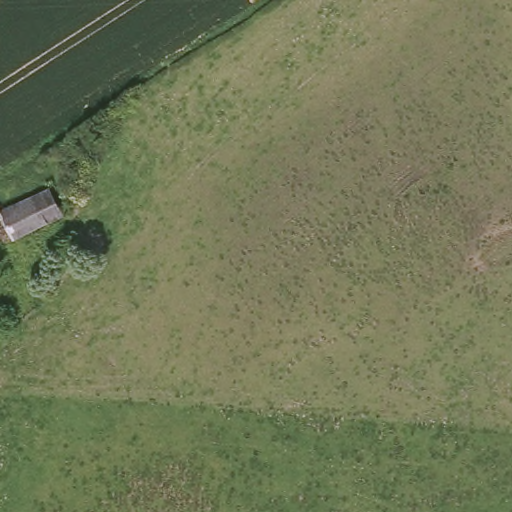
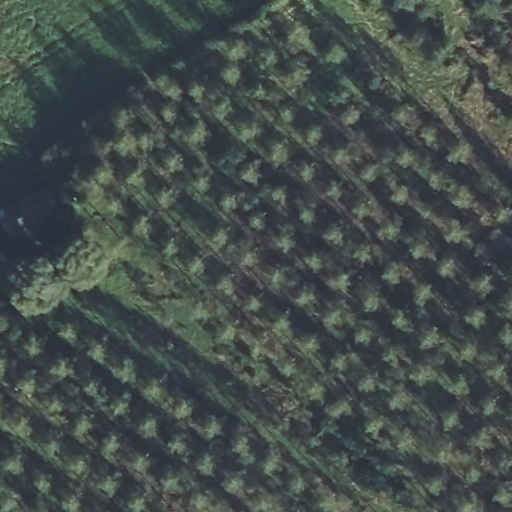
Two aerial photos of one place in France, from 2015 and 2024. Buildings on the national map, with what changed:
unchanged [(0,246),(0,211),(47,187),(65,218),(0,246)]

